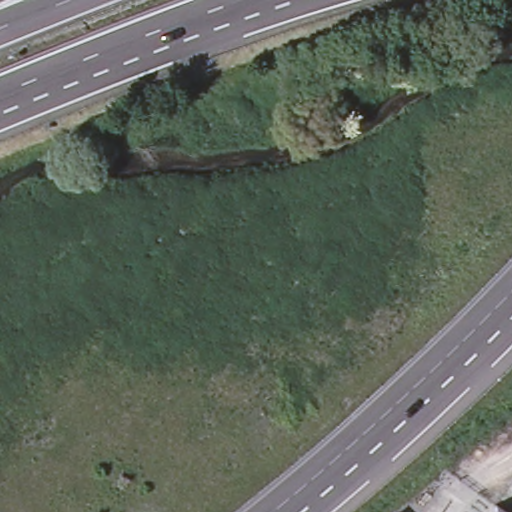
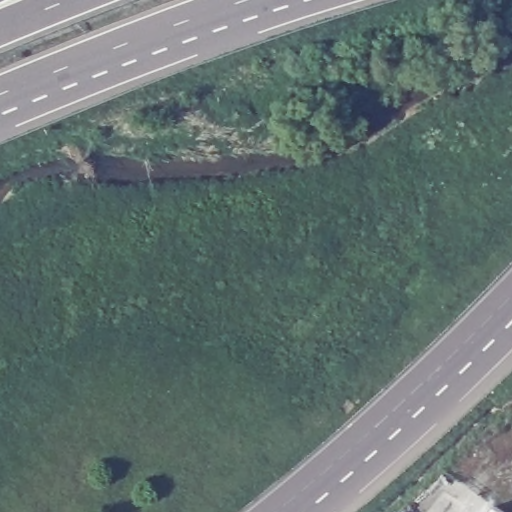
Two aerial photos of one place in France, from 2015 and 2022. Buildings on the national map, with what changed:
unchanged [(507,512),(496,512),(500,507),(507,512)]

